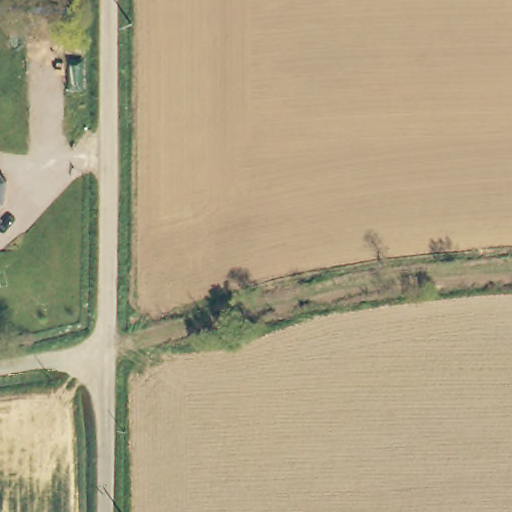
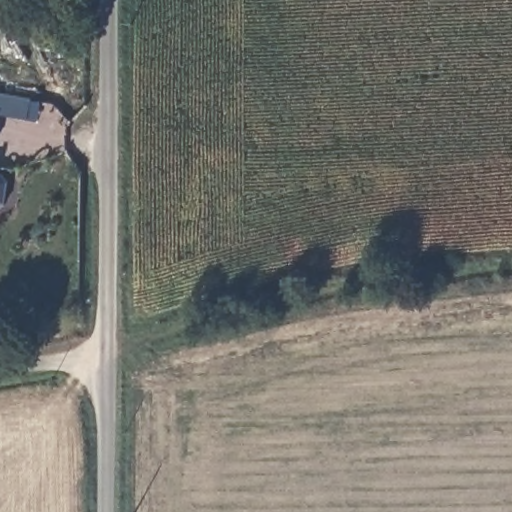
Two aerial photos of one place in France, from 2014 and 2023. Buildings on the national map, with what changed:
new [(28,121),(0,115),(0,93),(31,99),(28,121)]
unchanged [(6,209),(0,213),(0,177),(5,178),(10,187),(6,209)]

